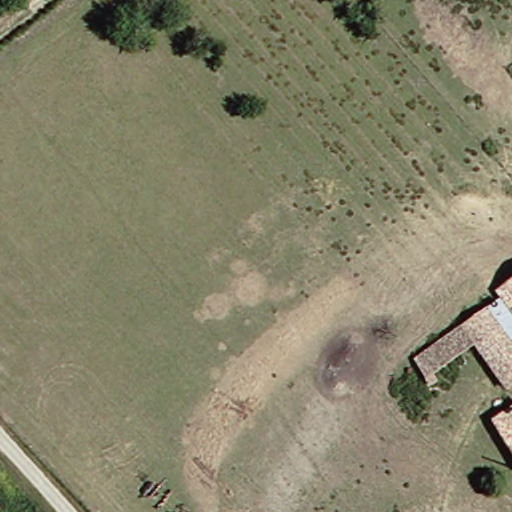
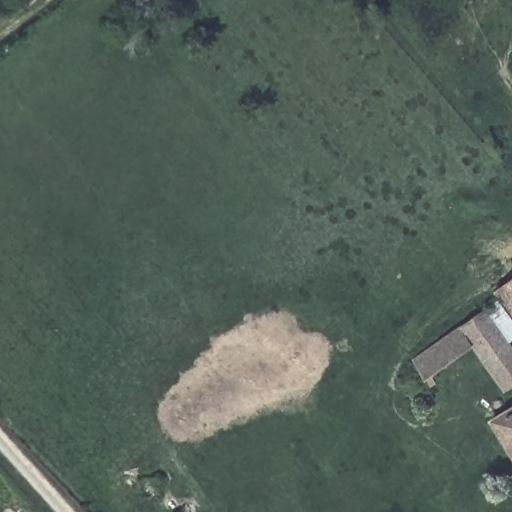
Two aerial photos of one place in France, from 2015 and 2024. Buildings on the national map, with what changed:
unchanged [(490,311),(506,300),(500,292),(512,283),(512,391),(479,346),(430,379),(418,363),(490,311)]
unchanged [(512,442),(498,420),(512,411),(512,442)]

